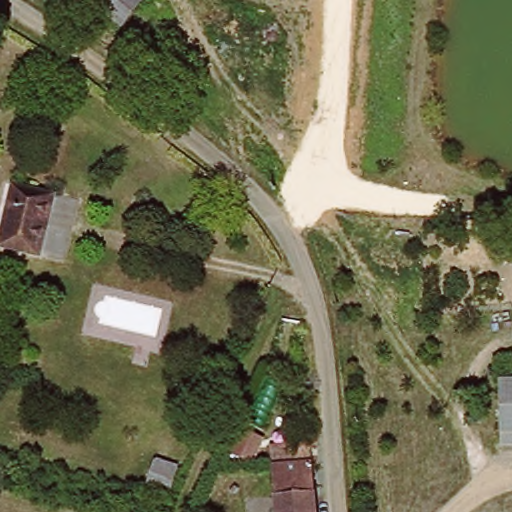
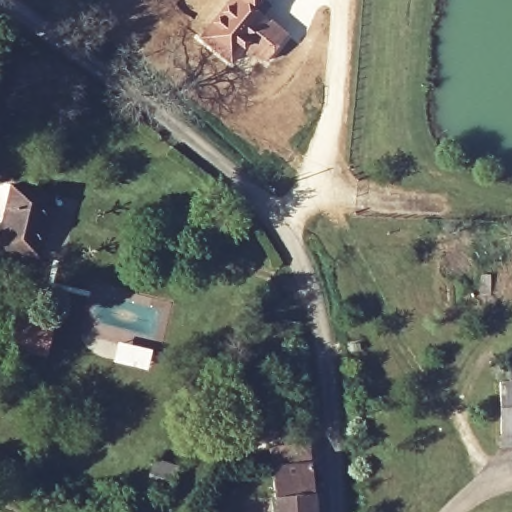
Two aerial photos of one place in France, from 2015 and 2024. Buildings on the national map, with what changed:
new [(255,8),(290,33),(265,65),(245,51),(233,66),(197,37),(225,0),(262,0),(255,8)]
unchanged [(0,243),(0,238),(15,194),(51,207),(35,255),(0,243)]
unchanged [(512,380),(512,446),(500,446),(498,380),(512,380)]
unchanged [(283,457),(316,454),(322,489),(285,489),(283,457)]
unchanged [(322,489),(322,512),(285,512),(285,489),(322,489)]

